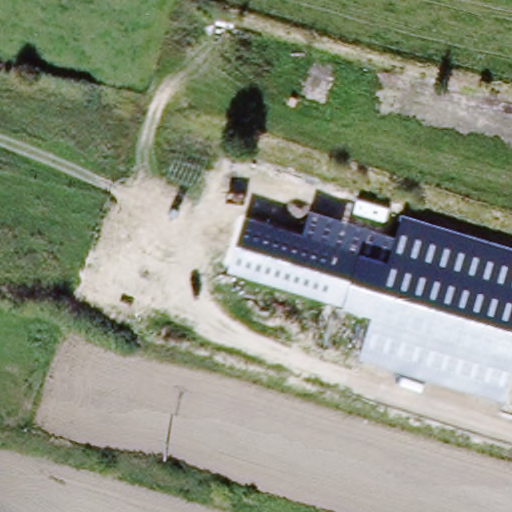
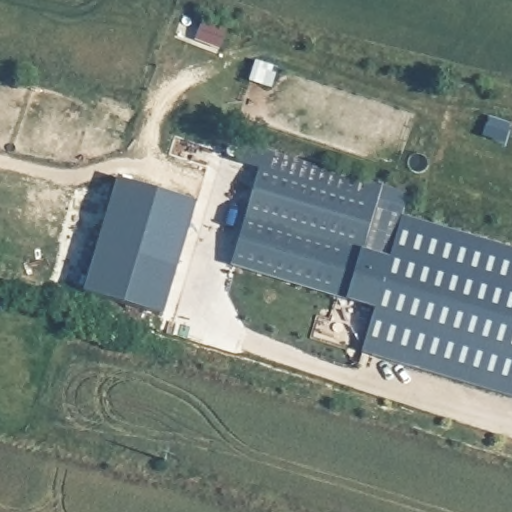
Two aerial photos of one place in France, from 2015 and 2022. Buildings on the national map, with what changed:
unchanged [(362,355),(374,313),(231,268),(264,171),(403,216),(512,248),(512,385),(508,397),(362,355)]
new [(117,180),(196,204),(161,318),(82,295),(117,180)]

